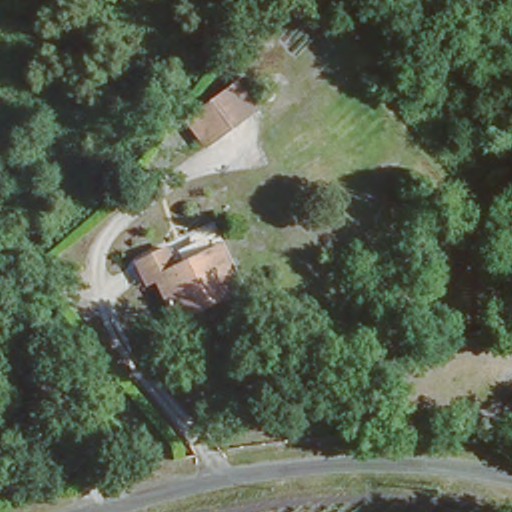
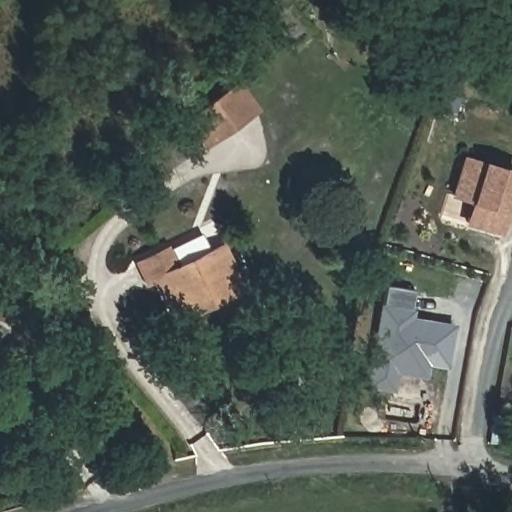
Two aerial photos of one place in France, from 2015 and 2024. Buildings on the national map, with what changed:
unchanged [(253,112),(201,146),(180,112),(231,79),(253,112)]
new [(462,225),(468,202),(449,195),(462,155),(481,160),(512,168),(512,197),(506,212),(501,236),(462,225)]
unchanged [(170,307),(153,272),(146,275),(136,255),(165,240),(174,257),(217,237),(238,284),(204,300),(173,315),(170,307)]
new [(411,318),(437,321),(426,379),(397,373),(393,393),(365,387),(378,304),(412,310),(411,318)]

